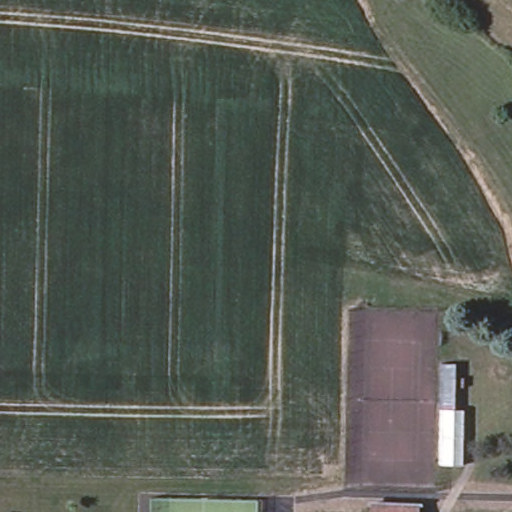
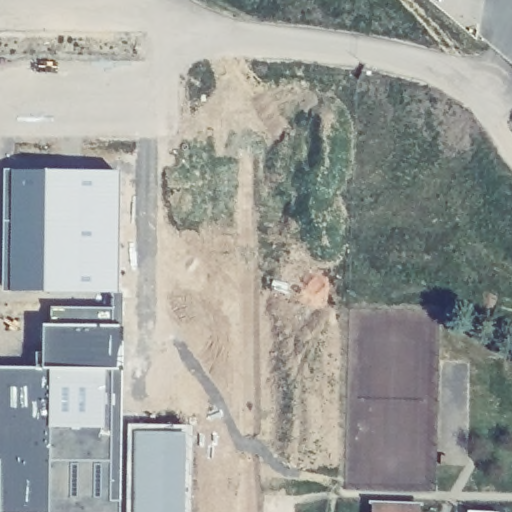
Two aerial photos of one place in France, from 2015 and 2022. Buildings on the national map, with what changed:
new [(110,171),(111,295),(9,292),(7,170),(110,171)]
new [(118,329),(120,369),(111,370),(111,512),(0,512),(0,371),(38,372),(40,328),(118,329)]
new [(190,430),(189,512),(124,512),(125,425),(190,430)]
unchanged [(367,504),(413,505),(413,512),(367,512),(367,504)]

